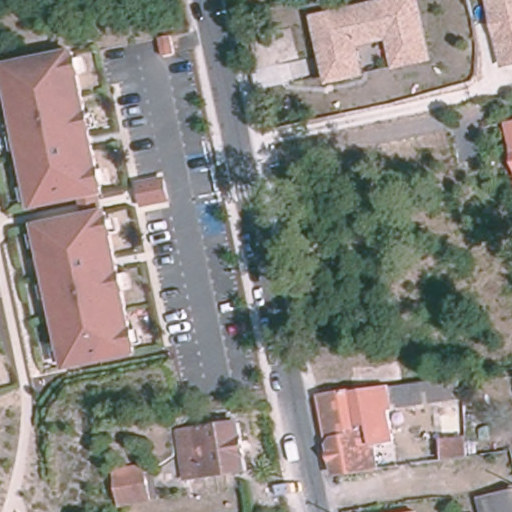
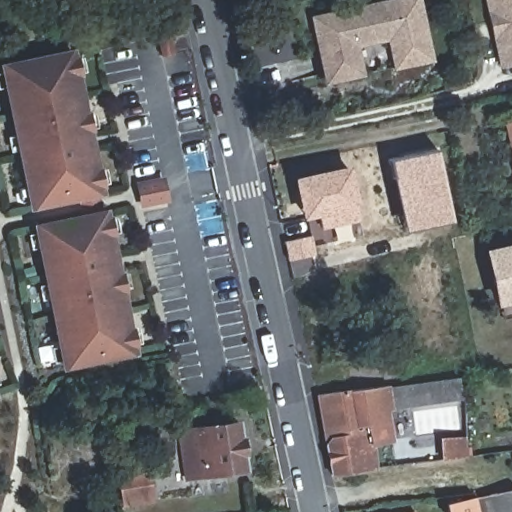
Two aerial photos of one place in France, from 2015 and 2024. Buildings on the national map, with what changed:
unchanged [(390,41),(361,47),(368,77),(327,85),(313,16),(384,0),(424,0),(437,61),(397,70),(390,41)]
unchanged [(487,0),(512,0),(512,67),(502,70),(487,0)]
unchanged [(173,40),(174,40),(177,58),(167,61),(163,42),(173,40)]
unchanged [(82,205),(79,190),(39,198),(11,57),(79,44),(107,184),(103,185),(105,201),(82,205)]
unchanged [(512,121),(512,139),(508,122),(512,121)]
new [(438,149),(452,221),(404,231),(390,159),(438,149)]
new [(352,165),(361,207),(358,207),(361,222),(323,230),(320,216),(302,220),(293,177),(352,165)]
unchanged [(166,182),(170,202),(145,206),(141,187),(166,182)]
unchanged [(108,215),(137,356),(68,370),(40,229),(108,215)]
new [(285,241),(313,236),(317,255),(288,261),(285,241)]
new [(486,249),(512,243),(512,302),(500,304),(486,249)]
unchanged [(329,474),(313,396),(455,377),(457,398),(391,407),(392,414),(382,417),(386,443),(366,447),(368,469),(329,474)]
demolished [(438,460),(433,407),(455,403),(460,457),(438,460)]
unchanged [(228,416),(230,431),(234,431),(239,476),(187,482),(180,437),(197,436),(196,420),(228,416)]
demolished [(511,430),(512,447),(495,448),(492,431),(511,430)]
new [(467,458),(442,460),(440,437),(466,435),(467,458)]
unchanged [(122,468),(147,465),(153,498),(126,502),(122,468)]
unchanged [(478,500),(512,492),(512,512),(482,512),(478,500)]
new [(482,512),(448,512),(447,503),(476,496),(478,495),(478,500),(482,512)]

